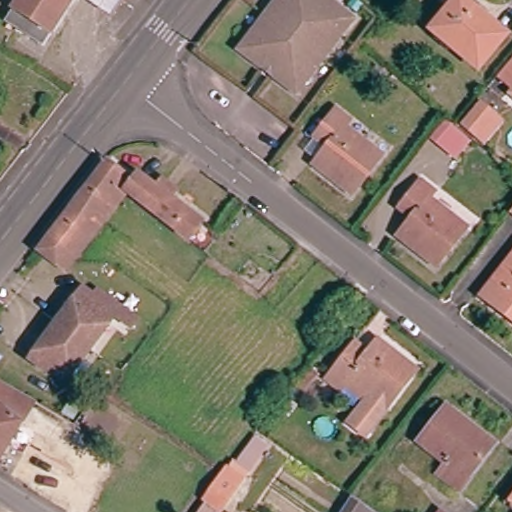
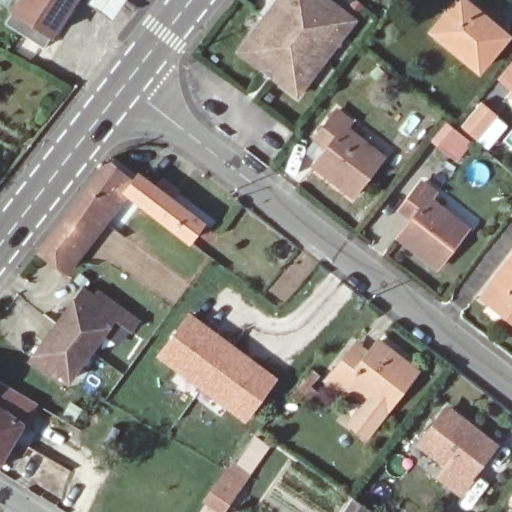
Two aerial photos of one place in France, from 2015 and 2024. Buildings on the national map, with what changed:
unchanged [(13,13),(11,12),(19,0),(73,0),(51,37),(50,37),(44,47),(7,23),(13,13)]
unchanged [(91,0),(124,0),(110,19),(89,3),(91,0)]
unchanged [(275,0),(327,0),(355,21),(295,98),(235,52),(275,0)]
unchanged [(456,0),(463,0),(507,36),(477,72),(430,32),(456,0)]
unchanged [(505,86),(506,85),(512,77),(512,92),(505,86)]
unchanged [(481,105),(495,117),(475,139),(462,127),(481,105)]
unchanged [(348,126),(343,133),(381,162),(350,201),(313,172),(315,169),(305,161),(317,144),(315,142),(335,116),(348,126)]
unchanged [(456,161),(428,139),(445,118),(456,128),(472,141),(456,161)]
unchanged [(139,205),(125,194),(103,223),(97,229),(97,230),(96,231),(71,264),(63,274),(36,252),(54,231),(69,210),(105,163),(132,184),(138,175),(154,187),(161,178),(179,192),(172,201),(202,225),(188,243),(139,205)]
unchanged [(420,183),(434,193),(428,200),(465,229),(435,267),(396,238),(411,217),(400,208),(420,183)]
unchanged [(512,211),(512,214),(510,213),(512,211)]
unchanged [(512,257),(512,322),(480,298),(512,257)]
unchanged [(74,382),(37,356),(86,288),(107,304),(111,298),(127,309),(143,321),(136,330),(120,318),(74,382)]
new [(185,374),(183,377),(155,357),(189,311),(227,340),(224,343),(236,353),(240,349),(278,378),(247,419),(185,374)]
unchanged [(346,355),(357,364),(375,342),(415,371),(365,438),(347,426),(370,396),(350,381),(343,390),(327,378),(346,355)]
unchanged [(0,462),(0,385),(35,405),(0,462)]
unchanged [(445,410),(492,447),(468,477),(471,479),(460,493),(438,476),(446,465),(417,444),(445,410)]
unchanged [(217,481),(230,463),(230,462),(249,475),(225,511),(206,498),(217,481)]
unchanged [(510,498),(512,495),(512,500),(510,498)]
unchanged [(368,512),(340,512),(349,499),(368,512)]

